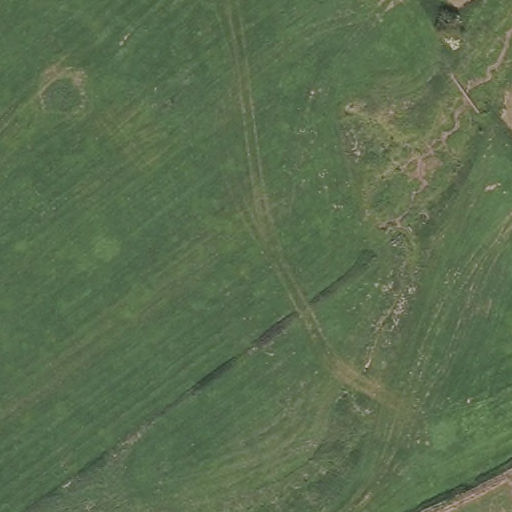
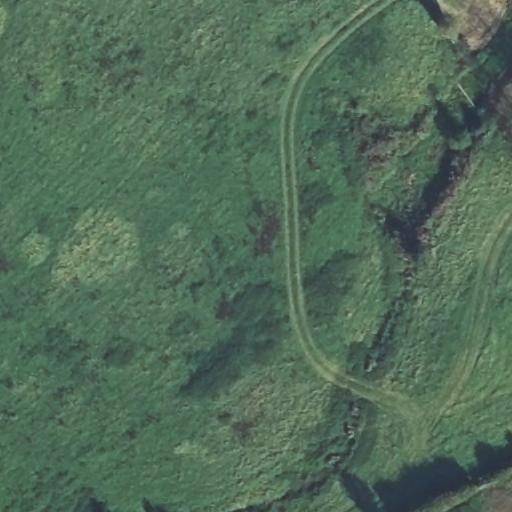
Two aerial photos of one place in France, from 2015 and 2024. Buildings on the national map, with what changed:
[]

